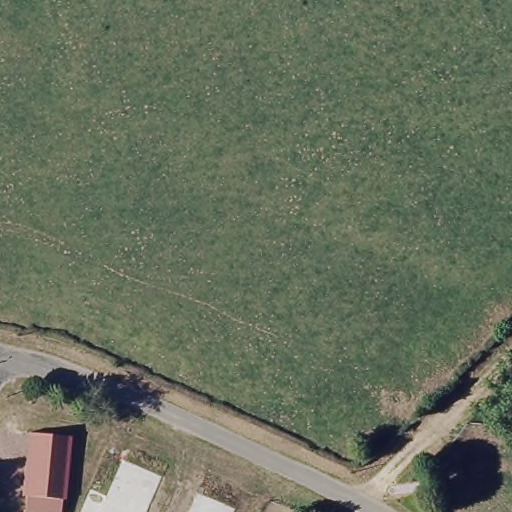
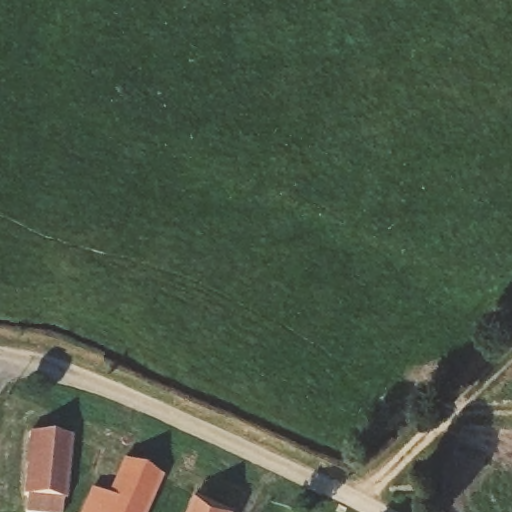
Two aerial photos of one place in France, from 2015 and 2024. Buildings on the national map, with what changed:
unchanged [(75,444),(65,507),(60,507),(59,512),(23,512),(25,500),(21,500),(32,438),(75,444)]
new [(110,495),(126,460),(159,474),(147,500),(152,502),(148,512),(81,512),(92,487),(110,495)]
new [(237,508),(235,512),(187,512),(197,491),(237,508)]

